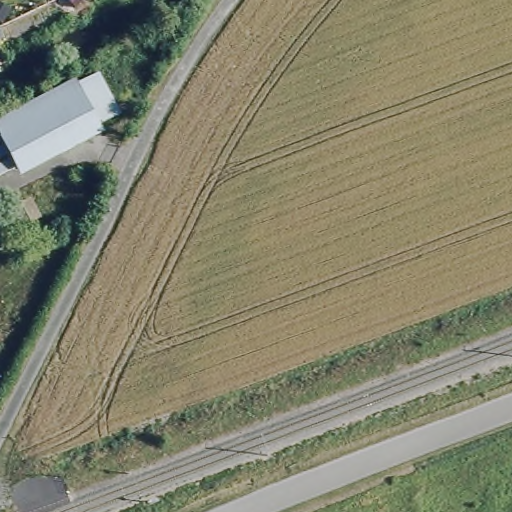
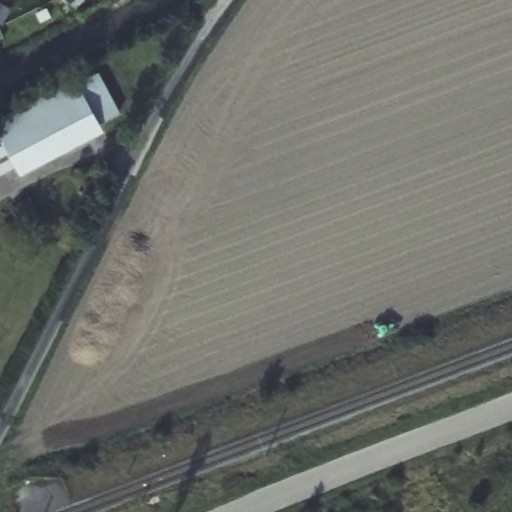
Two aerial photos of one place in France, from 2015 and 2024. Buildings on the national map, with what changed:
unchanged [(74,82),(96,72),(116,115),(95,126),(74,82)]
unchanged [(98,133),(20,172),(16,165),(0,132),(0,118),(74,82),(95,126),(98,133)]
unchanged [(0,171),(0,132),(16,165),(0,171)]

